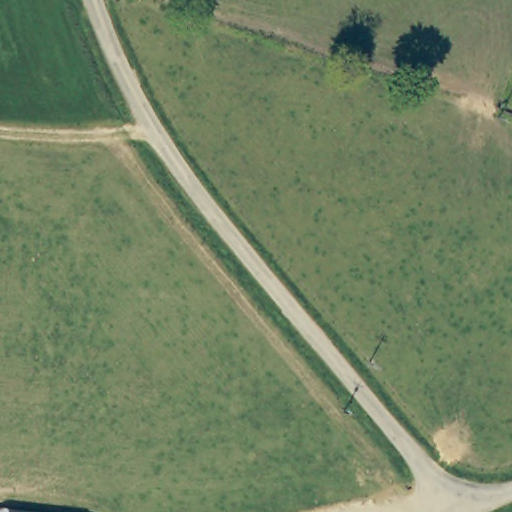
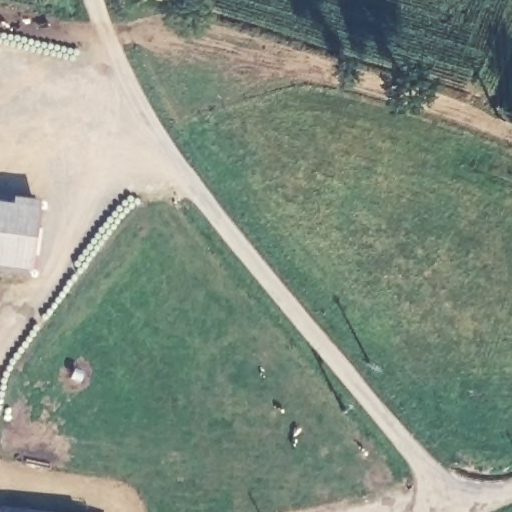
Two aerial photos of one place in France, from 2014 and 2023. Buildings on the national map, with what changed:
new [(12,205),(12,197),(40,200),(30,271),(0,267),(0,203),(12,205)]
unchanged [(40,512),(0,512),(0,507),(40,512)]

